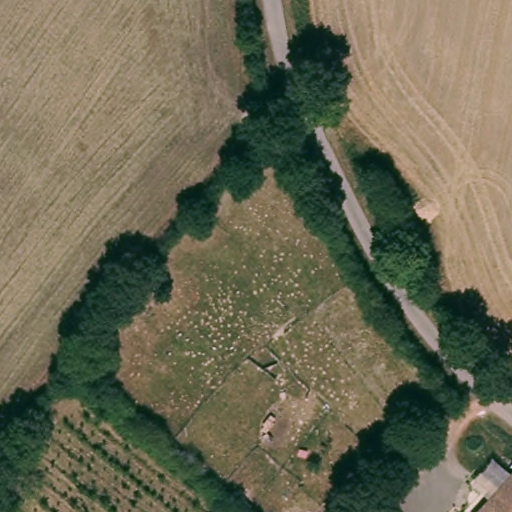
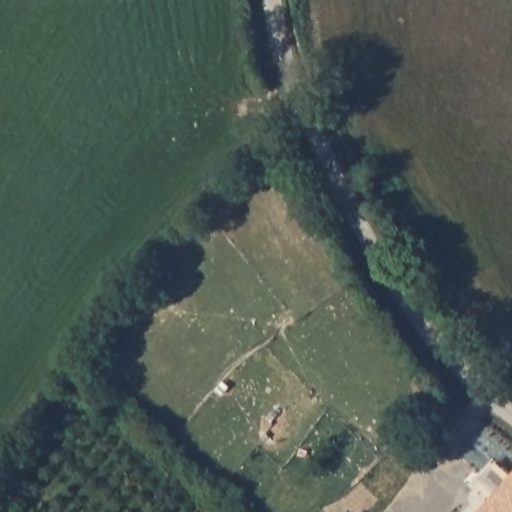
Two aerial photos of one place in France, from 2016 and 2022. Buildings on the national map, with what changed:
unchanged [(512,512),(476,512),(512,472),(512,512)]

